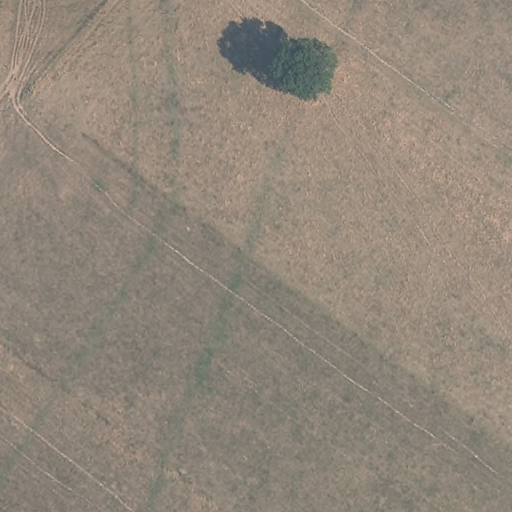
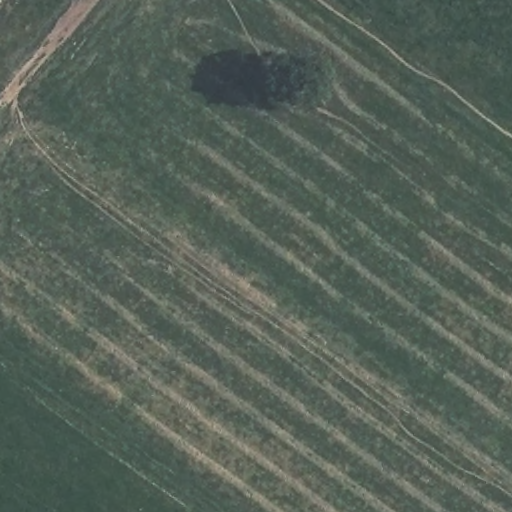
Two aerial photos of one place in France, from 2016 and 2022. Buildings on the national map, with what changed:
unchanged [(6,0),(0,7),(0,0),(6,0)]

